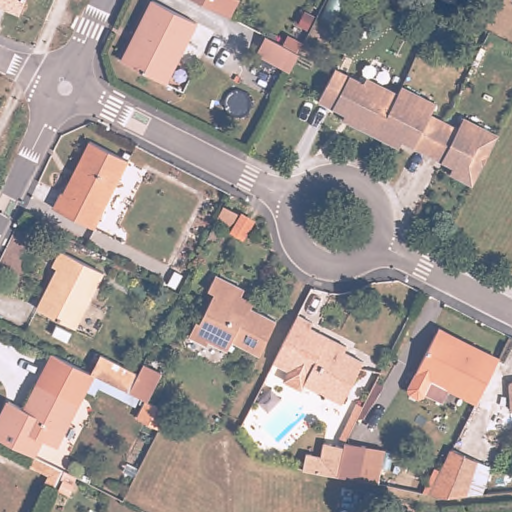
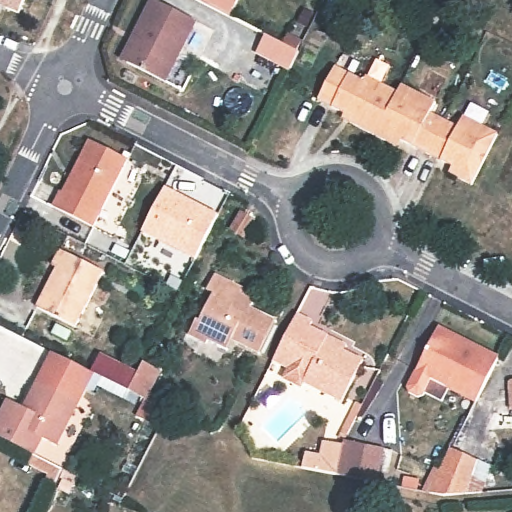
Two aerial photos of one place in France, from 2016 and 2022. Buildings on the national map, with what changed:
unchanged [(20,16),(0,8),(0,0),(26,0),(20,16)]
unchanged [(137,24),(149,0),(152,0),(193,20),(164,79),(126,60),(120,57),(137,24)]
unchanged [(197,0),(235,0),(227,15),(197,0)]
unchanged [(254,52),(263,33),(297,50),(287,69),(254,52)]
unchanged [(398,140),(395,147),(388,143),(377,138),(345,123),(339,118),(341,114),(315,99),(332,66),(361,81),(363,76),(395,92),(399,85),(403,87),(433,103),(427,114),(455,128),(460,117),(495,135),(486,153),(470,184),(454,175),(446,172),(450,165),(398,140)]
unchanged [(128,159),(94,227),(51,205),(59,191),(61,192),(72,171),(89,139),(128,159)]
new [(166,185),(220,214),(197,259),(141,233),(166,185)]
unchanged [(36,308),(56,268),(51,265),(59,250),(101,272),(73,327),(36,308)]
unchanged [(208,289),(215,273),(244,288),(241,294),(253,300),(250,306),(276,319),(259,351),(232,338),(227,348),(208,338),(206,342),(189,333),(195,319),(199,321),(214,292),(208,289)]
unchanged [(313,323),(332,333),(350,342),(347,347),(366,356),(345,396),(307,377),(305,383),(286,373),(291,363),(277,356),(301,309),(317,317),(313,323)]
unchanged [(440,322),(473,338),(501,352),(479,396),(450,382),(444,396),(426,387),(425,390),(419,392),(411,388),(409,382),(417,366),(437,328),(440,322)]
unchanged [(99,349),(137,368),(141,361),(157,370),(146,396),(127,386),(91,369),(78,397),(56,440),(43,433),(34,450),(0,433),(0,411),(8,397),(23,405),(29,393),(38,377),(51,349),(89,368),(99,349)]
unchanged [(504,410),(501,378),(512,377),(512,410),(504,410)]
unchanged [(146,396),(167,406),(160,421),(159,422),(137,412),(146,396)]
unchanged [(367,405),(348,441),(342,437),(361,402),(367,405)]
unchanged [(301,466),(305,450),(322,454),(327,439),(347,445),(348,441),(388,452),(379,482),(339,474),(301,466)]
unchanged [(432,488),(454,446),(479,459),(465,489),(446,491),(432,488)]
unchanged [(29,460),(34,450),(64,465),(59,476),(55,484),(45,479),(49,471),(29,460)]

